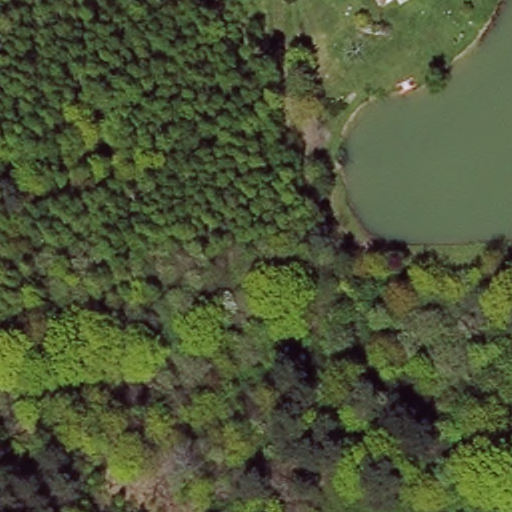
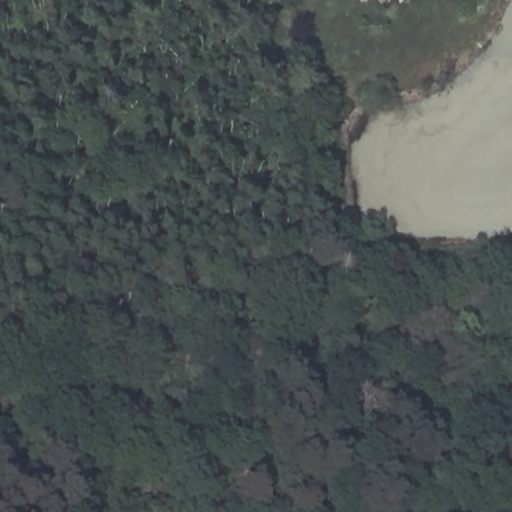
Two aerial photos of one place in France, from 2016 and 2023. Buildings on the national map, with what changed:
unchanged [(387,7),(383,0),(398,0),(387,7)]

